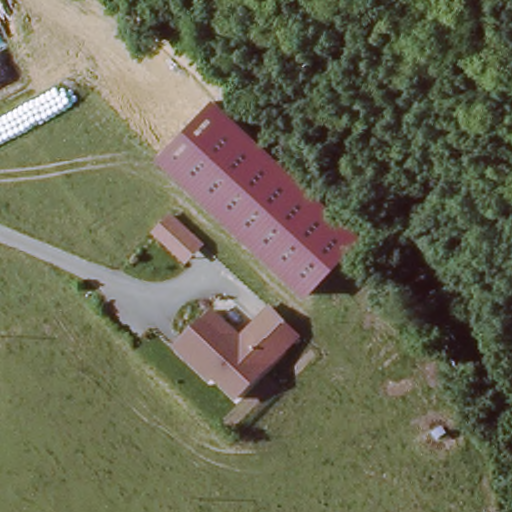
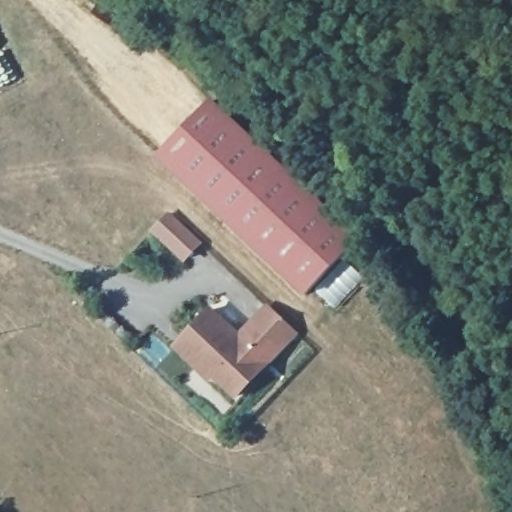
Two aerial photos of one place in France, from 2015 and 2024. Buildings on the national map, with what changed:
unchanged [(212,101),(360,237),(306,297),(158,160),(212,101)]
unchanged [(203,244),(185,263),(151,232),(171,214),(203,244)]
unchanged [(180,338),(206,307),(237,333),(263,300),(293,326),(235,393),(211,372),(208,377),(195,366),(172,347),(180,338)]

